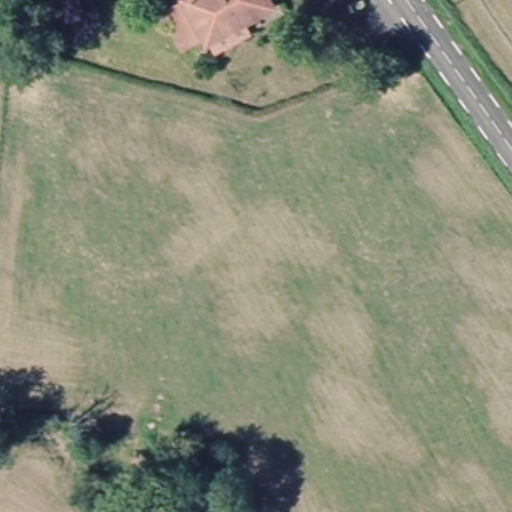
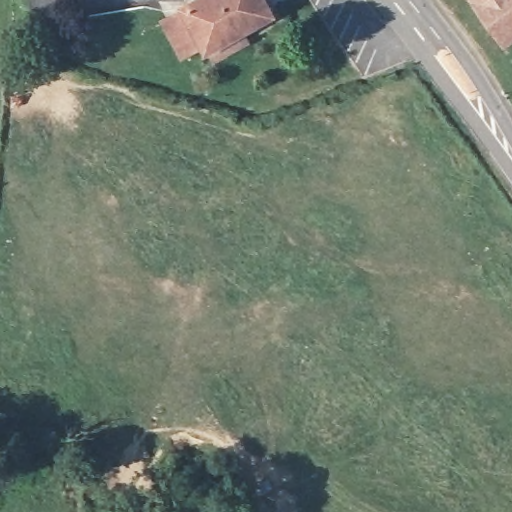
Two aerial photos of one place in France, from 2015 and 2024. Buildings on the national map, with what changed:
unchanged [(185,1),(187,0),(268,0),(272,6),(206,38),(185,48),(166,12),(185,1)]
new [(470,0),(512,0),(512,39),(504,45),(470,0)]

